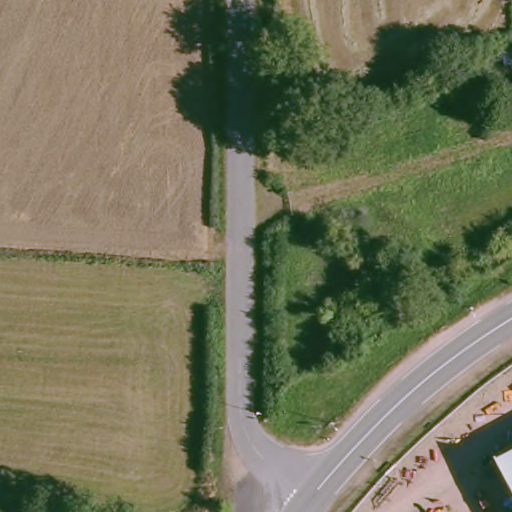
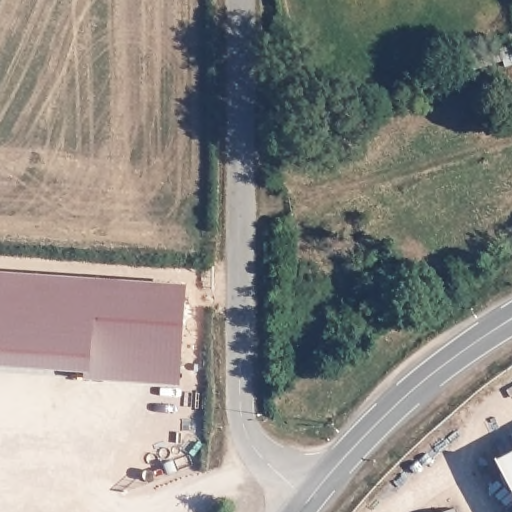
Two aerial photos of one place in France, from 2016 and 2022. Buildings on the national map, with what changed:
new [(181,374),(90,368),(91,348),(0,342),(0,266),(187,278),(181,374)]
unchanged [(512,460),(512,482),(503,465),(512,460)]

